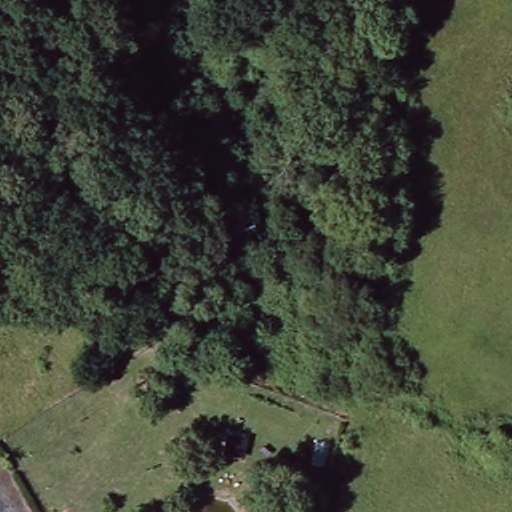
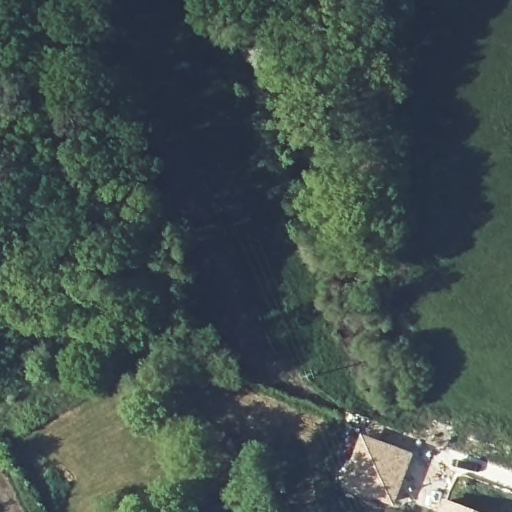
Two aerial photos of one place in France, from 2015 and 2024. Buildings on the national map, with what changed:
new [(360,443),(407,459),(391,506),(344,489),(360,443)]
new [(442,495),(486,512),(437,512),(442,495)]

